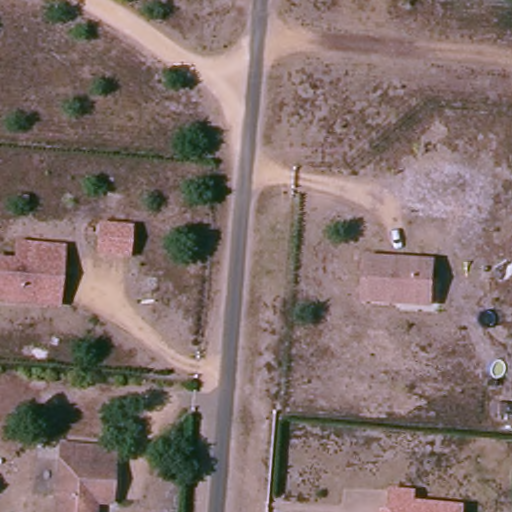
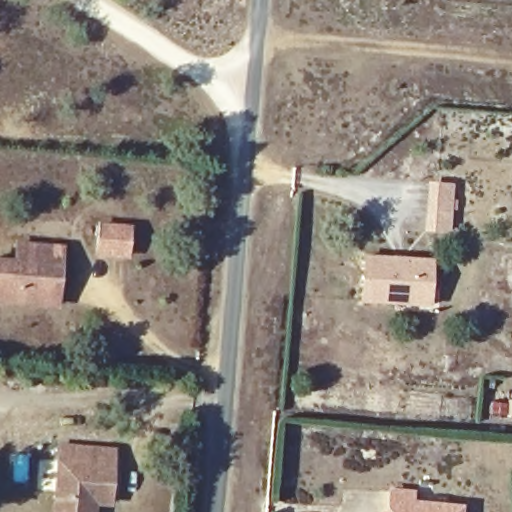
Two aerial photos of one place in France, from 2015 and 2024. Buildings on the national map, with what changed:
new [(428,181),(455,182),(451,233),(425,231),(428,181)]
unchanged [(133,224),(130,258),(93,255),(97,221),(133,224)]
unchanged [(65,244),(59,311),(0,306),(0,257),(11,257),(12,241),(65,244)]
unchanged [(435,258),(430,305),(359,303),(361,254),(435,258)]
unchanged [(97,503),(98,512),(63,512),(65,466),(66,452),(118,450),(117,465),(117,504),(97,503)]
unchanged [(395,503),(402,503),(401,485),(423,484),(423,497),(475,500),(473,512),(395,512),(395,503)]

